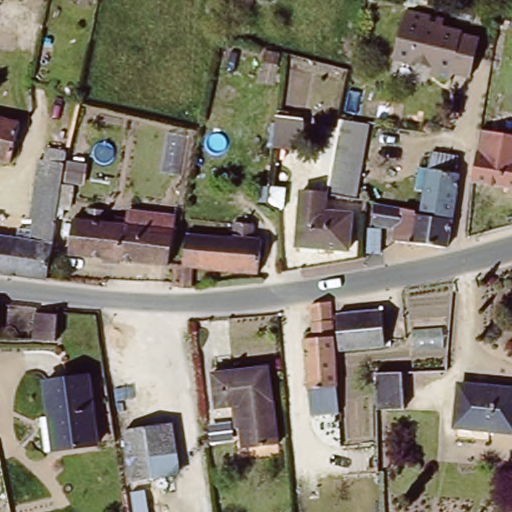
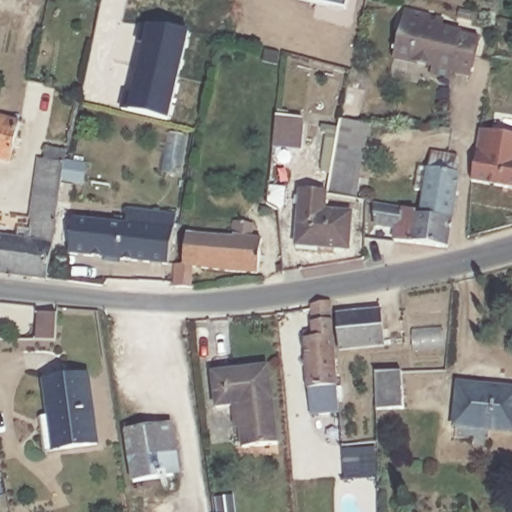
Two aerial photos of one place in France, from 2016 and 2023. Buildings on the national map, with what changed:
unchanged [(444,24),(464,28),(464,31),(480,35),(473,77),(454,73),(452,79),(430,75),(432,66),(396,59),(406,8),(445,16),(444,24)]
new [(142,26),(189,32),(179,77),(140,67),(146,44),(138,42),(142,26)]
new [(127,92),(134,94),(140,67),(179,77),(168,120),(123,109),(127,92)]
unchanged [(279,122),(281,106),(307,113),(298,156),(276,151),(279,122)]
unchanged [(294,182),(324,184),(340,108),(371,115),(358,196),(332,194),(331,203),(351,206),(351,250),(294,249),(294,182)]
unchanged [(18,121),(8,160),(0,158),(0,118),(18,121)]
unchanged [(512,140),(512,186),(471,176),(479,131),(512,140)]
unchanged [(427,205),(437,149),(444,151),(446,143),(457,144),(454,151),(459,152),(457,163),(462,164),(455,208),(427,205)]
unchanged [(15,237),(15,234),(17,225),(28,226),(29,226),(33,210),(33,209),(35,200),(40,200),(41,194),(36,194),(39,181),(43,182),(46,166),(53,167),(53,160),(56,158),(66,159),(58,201),(56,214),(56,216),(56,217),(47,268),(45,276),(0,271),(0,235),(15,237)]
unchanged [(370,214),(377,215),(381,195),(416,201),(422,202),(421,204),(422,204),(427,205),(455,208),(451,236),(397,229),(398,219),(386,217),(384,222),(387,241),(380,242),(372,243),(371,232),(370,214)]
unchanged [(175,272),(176,267),(180,267),(186,221),(231,226),(235,206),(253,209),(253,218),(266,220),(265,232),(258,275),(198,270),(195,290),(174,288),(175,272)]
unchanged [(81,224),(81,223),(83,215),(99,217),(103,217),(103,226),(125,229),(127,219),(133,220),(146,222),(146,216),(173,219),(166,268),(68,259),(73,223),(81,224)]
unchanged [(402,342),(337,353),(333,320),(331,299),(343,297),(345,311),(396,303),(402,342)]
unchanged [(334,407),(305,408),(299,330),(308,329),(305,302),(328,299),(334,407)]
unchanged [(35,310),(51,311),(46,345),(30,344),(35,310)]
unchanged [(236,404),(217,407),(213,371),(268,367),(274,443),(241,447),(236,404)]
unchanged [(374,371),(374,369),(401,368),(399,405),(374,404),(374,371)]
unchanged [(90,372),(98,439),(60,445),(56,416),(49,417),(43,378),(90,372)]
unchanged [(462,384),(512,390),(512,433),(456,426),(462,384)]
unchanged [(133,483),(124,431),(172,424),(181,476),(133,483)]
new [(149,512),(134,512),(131,492),(146,490),(149,512)]

